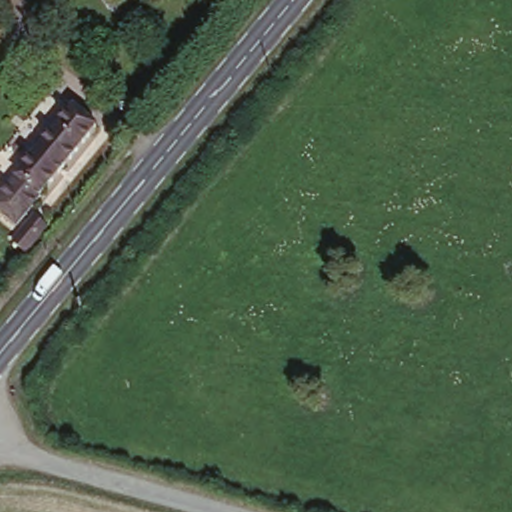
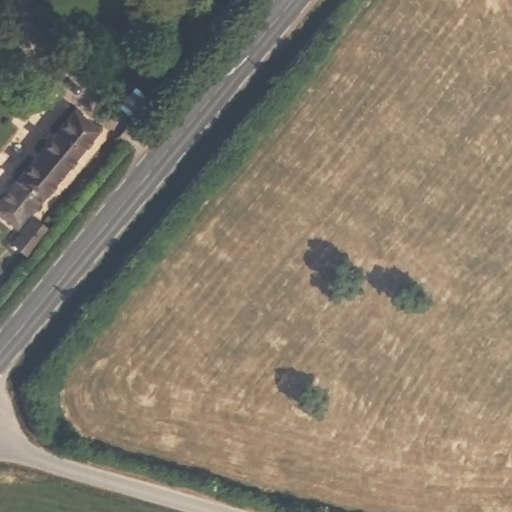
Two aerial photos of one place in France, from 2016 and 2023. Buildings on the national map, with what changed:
unchanged [(96,125),(10,224),(0,215),(0,191),(76,107),(96,125)]
unchanged [(7,236),(0,242),(0,229),(7,236)]

